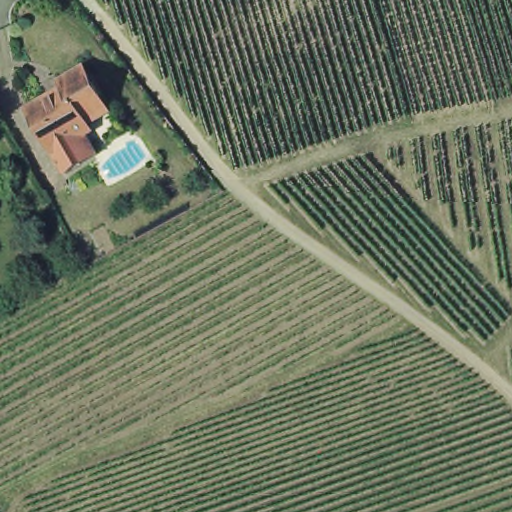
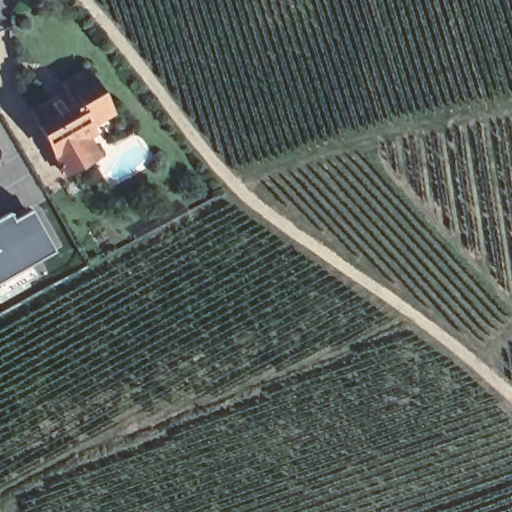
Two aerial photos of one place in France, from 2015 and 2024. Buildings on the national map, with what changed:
unchanged [(60,180),(49,158),(27,115),(62,95),(58,87),(81,75),(105,117),(82,129),(87,137),(82,140),(94,162),(60,180)]
new [(8,213),(12,219),(29,208),(52,251),(31,263),(38,275),(0,296),(0,217),(8,213)]

